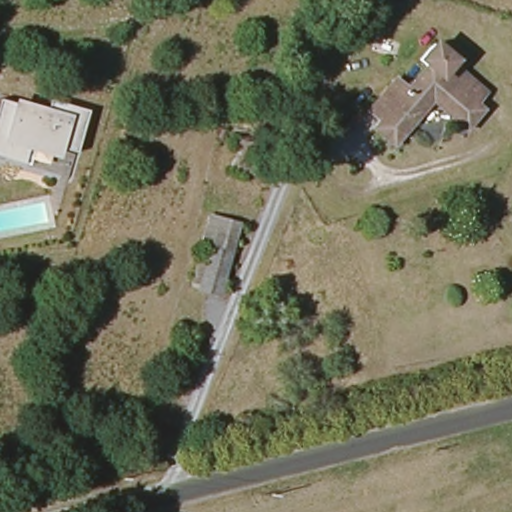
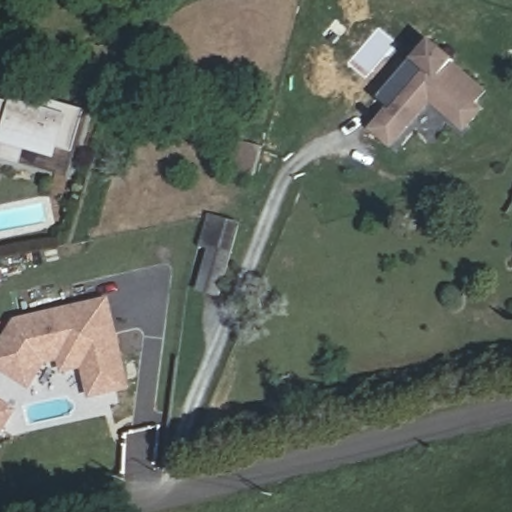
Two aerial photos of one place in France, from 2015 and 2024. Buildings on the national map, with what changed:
unchanged [(378,129),(385,120),(375,114),(401,83),(410,90),(429,66),(422,63),(439,43),(460,62),(457,66),(491,94),(481,106),(488,109),(469,133),(436,104),(399,148),(378,129)]
unchanged [(50,98),(88,109),(76,152),(62,149),(59,159),(49,156),(47,164),(27,159),(26,164),(0,156),(0,99),(14,104),(15,98),(47,107),(50,98)]
unchanged [(232,169),(241,139),(266,146),(257,177),(232,169)]
unchanged [(198,291),(212,247),(233,254),(219,297),(198,291)]
new [(105,300),(111,324),(104,326),(106,333),(112,332),(124,385),(90,393),(83,363),(62,368),(60,354),(43,359),(27,383),(0,366),(0,346),(16,320),(105,300)]
new [(0,414),(6,419),(0,427),(0,403),(6,408),(0,414)]

